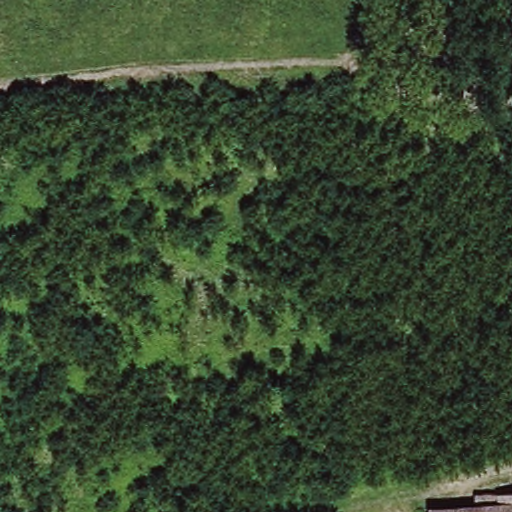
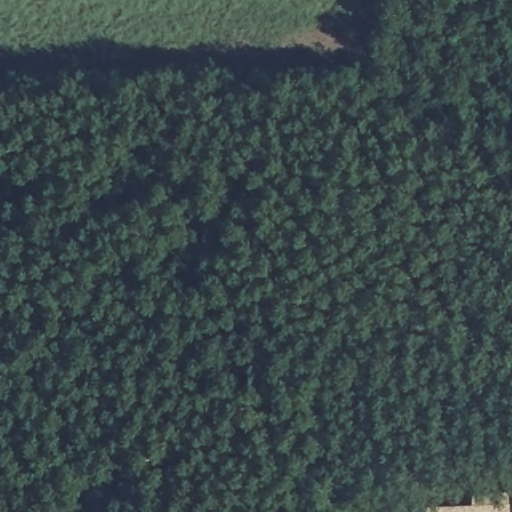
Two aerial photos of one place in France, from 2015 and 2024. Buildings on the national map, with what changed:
unchanged [(512,489),(512,512),(476,512),(475,502),(475,490),(512,489)]
unchanged [(475,502),(476,512),(429,512),(429,504),(475,502)]

